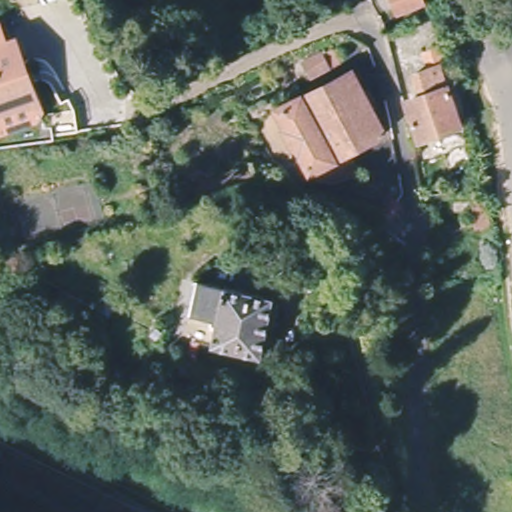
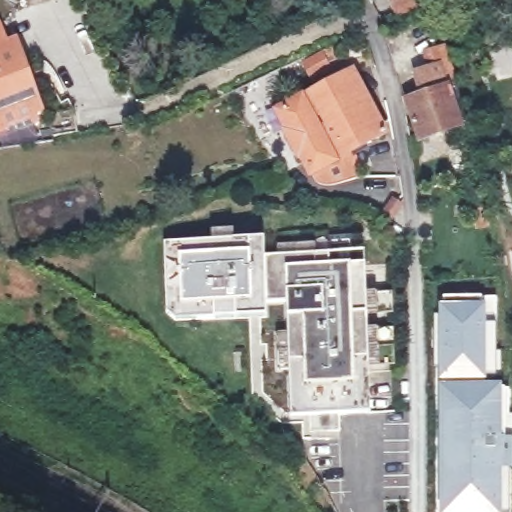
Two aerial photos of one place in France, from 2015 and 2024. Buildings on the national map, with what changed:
unchanged [(392,0),(409,0),(414,8),(391,20),(383,5),(392,0)]
unchanged [(35,124),(0,135),(0,44),(9,41),(29,104),(35,124)]
unchanged [(323,56),(329,69),(311,78),(304,65),(323,56)]
unchanged [(384,134),(312,173),(281,111),(352,73),(384,134)]
unchanged [(467,135),(459,137),(420,149),(409,114),(422,110),(416,89),(439,80),(447,103),(459,100),(467,135)]
new [(370,410),(292,415),(288,315),(288,299),(265,299),(265,315),(178,318),(168,310),(164,242),(264,239),(264,254),(363,253),(370,410)]
demolished [(224,286),(225,284),(272,293),(268,314),(279,317),(276,330),(264,328),(260,350),(214,340),(214,338),(189,333),(199,282),(224,286)]
new [(437,326),(439,296),(497,296),(496,374),(488,374),(488,382),(437,382),(437,326)]
new [(488,382),(502,383),(504,436),(512,437),(512,471),(510,471),(510,512),(437,512),(437,382),(488,382)]

